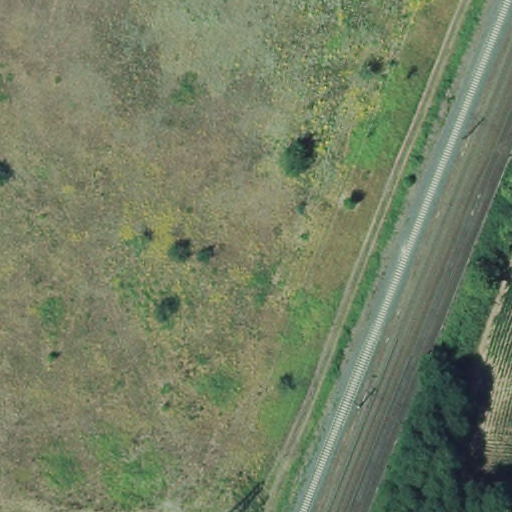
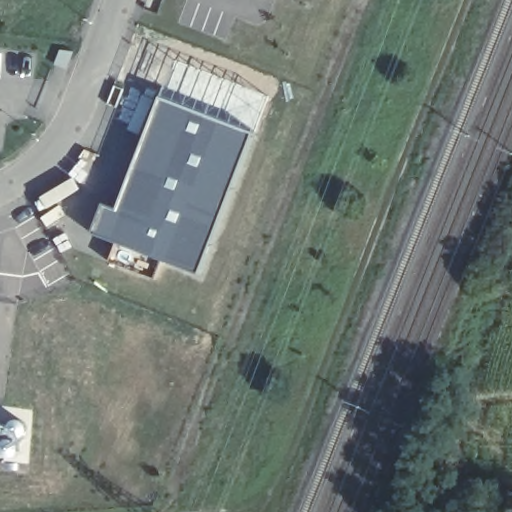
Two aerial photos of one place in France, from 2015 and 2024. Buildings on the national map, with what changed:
new [(245,134),(191,272),(88,235),(97,206),(111,210),(152,99),(245,134)]

